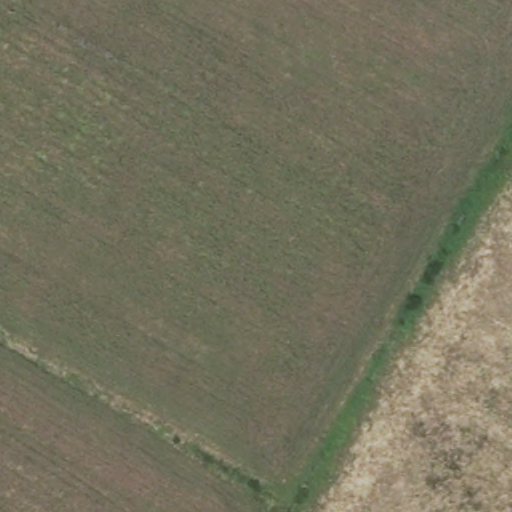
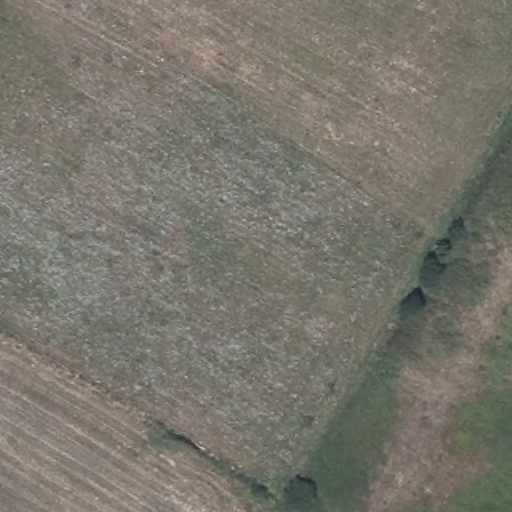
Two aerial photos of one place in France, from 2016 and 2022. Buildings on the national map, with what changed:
[]

